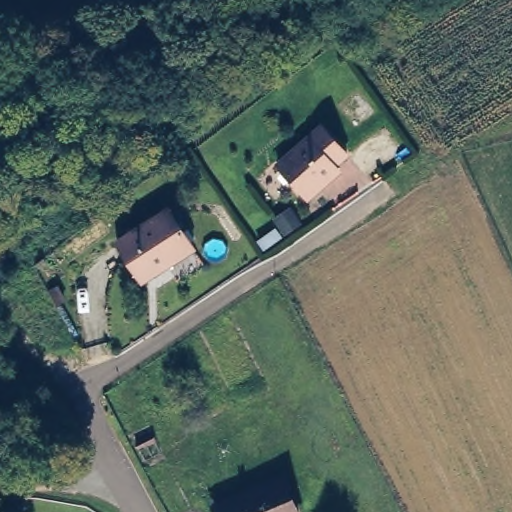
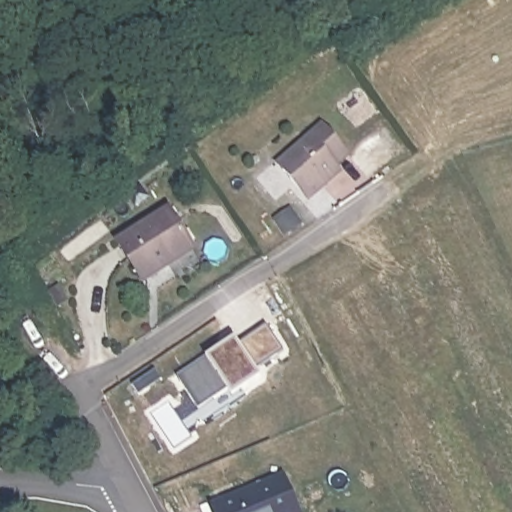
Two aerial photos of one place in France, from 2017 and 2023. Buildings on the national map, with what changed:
unchanged [(311,200),(282,166),(327,128),(351,156),(338,167),(342,173),(311,200)]
unchanged [(137,275),(115,242),(166,209),(192,248),(163,267),(140,282),(137,275)]
unchanged [(278,223),(295,212),(304,225),(287,236),(278,223)]
new [(228,390),(199,409),(178,378),(205,360),(212,359),(220,354),(217,351),(235,339),(239,344),(267,325),(285,351),(257,370),(262,377),(243,389),(233,396),(228,390)]
unchanged [(287,478),(301,512),(223,512),(220,505),(287,478)]

